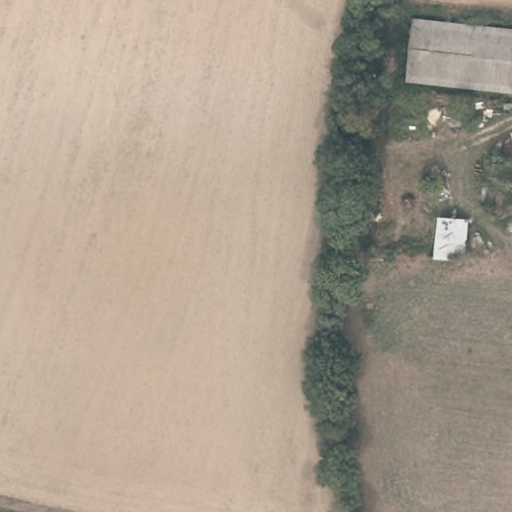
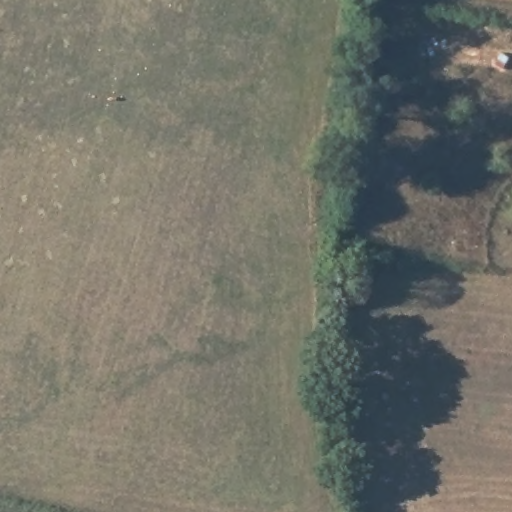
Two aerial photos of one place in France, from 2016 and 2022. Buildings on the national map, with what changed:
demolished [(512,90),(392,75),(399,16),(512,28),(512,83),(512,90)]

